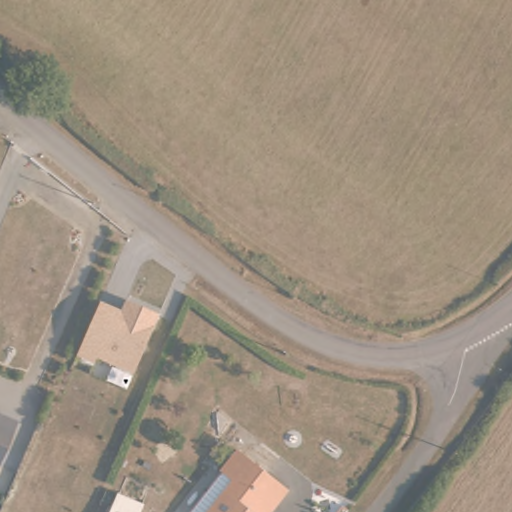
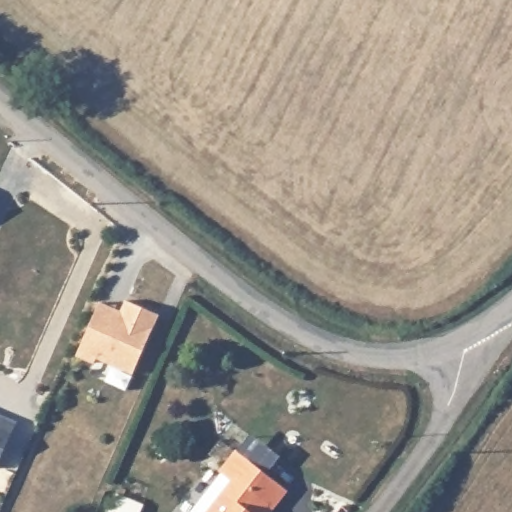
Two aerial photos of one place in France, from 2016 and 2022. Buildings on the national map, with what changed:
unchanged [(99,358),(96,362),(78,356),(102,302),(121,310),(126,298),(161,313),(136,373),(99,358)]
unchanged [(7,417),(20,423),(17,432),(1,470),(0,469),(0,415),(7,417)]
unchanged [(222,478),(221,477),(237,454),(266,476),(288,493),(277,508),(271,505),(265,512),(195,512),(222,478)]

